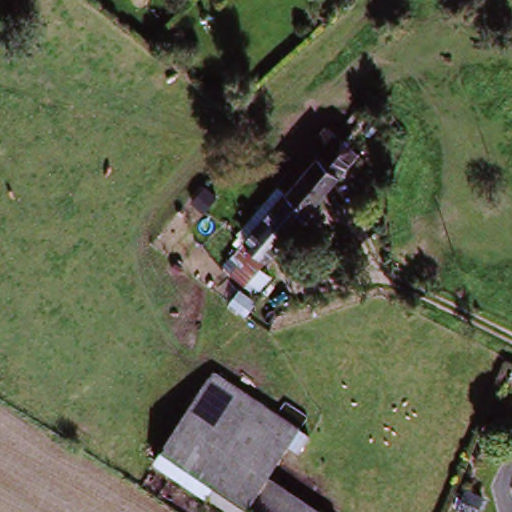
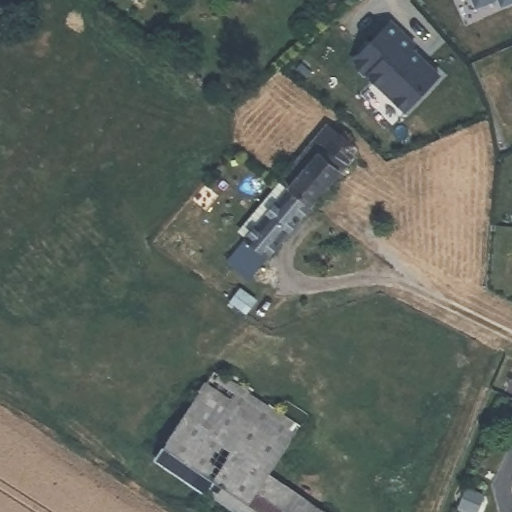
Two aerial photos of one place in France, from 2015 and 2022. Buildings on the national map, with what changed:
new [(474,7),(471,0),(490,0),(474,7)]
new [(497,0),(512,0),(512,2),(500,6),(497,0)]
new [(417,43),(412,47),(440,74),(405,113),(350,60),(388,19),(417,43)]
unchanged [(307,163),(297,153),(330,112),(343,122),(337,131),(359,147),(298,224),(273,207),(307,163)]
unchanged [(230,263),(273,207),(298,224),(255,281),(230,263)]
unchanged [(217,374),(312,437),(304,453),(293,447),(265,492),(172,434),(217,374)]
unchanged [(172,434),(265,492),(296,512),(249,512),(159,455),(172,434)]

